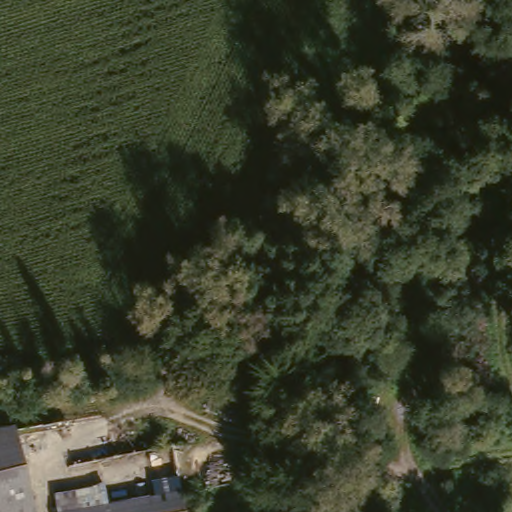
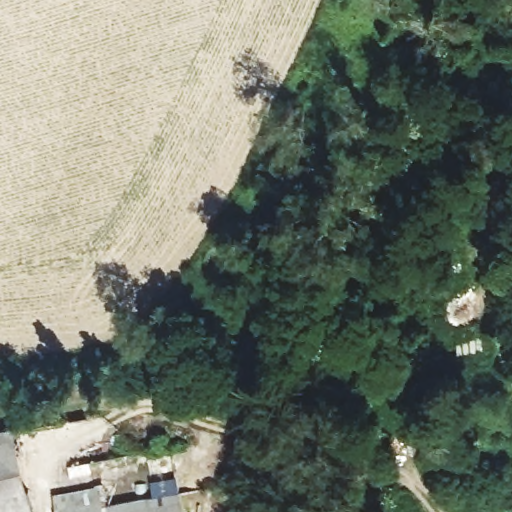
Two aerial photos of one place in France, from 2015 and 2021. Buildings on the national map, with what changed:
unchanged [(30,512),(0,512),(0,440),(12,437),(30,512)]
unchanged [(177,499),(179,512),(73,512),(177,499)]

